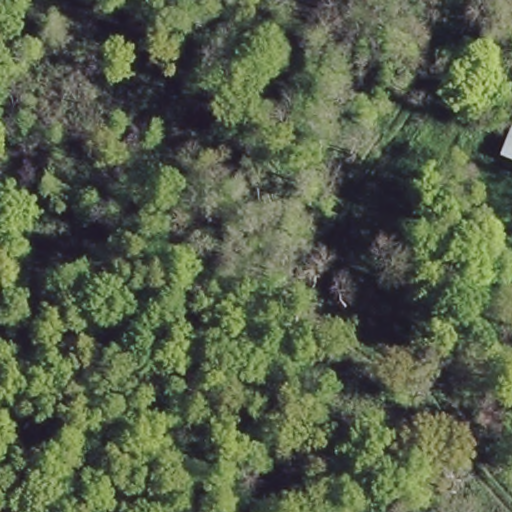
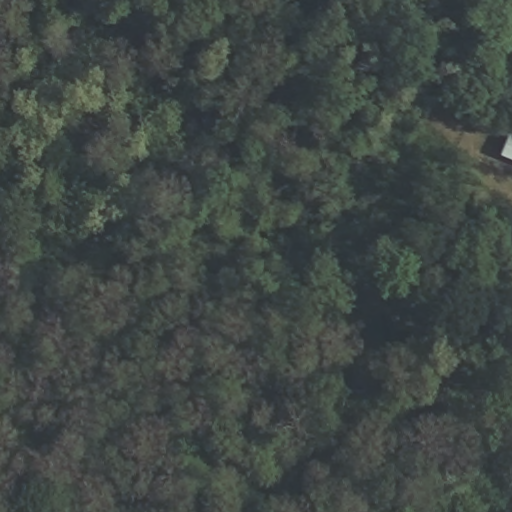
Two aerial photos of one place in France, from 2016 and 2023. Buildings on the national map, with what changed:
[]

